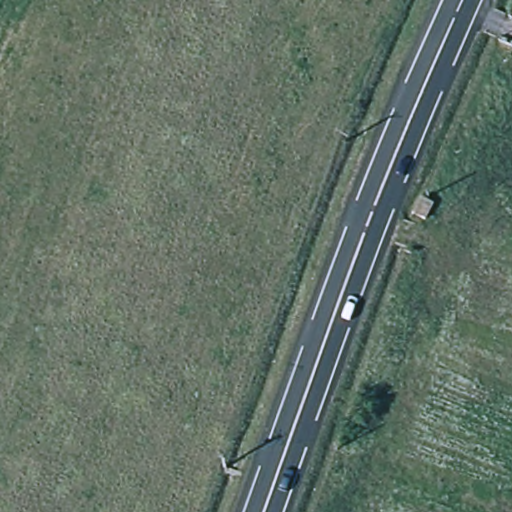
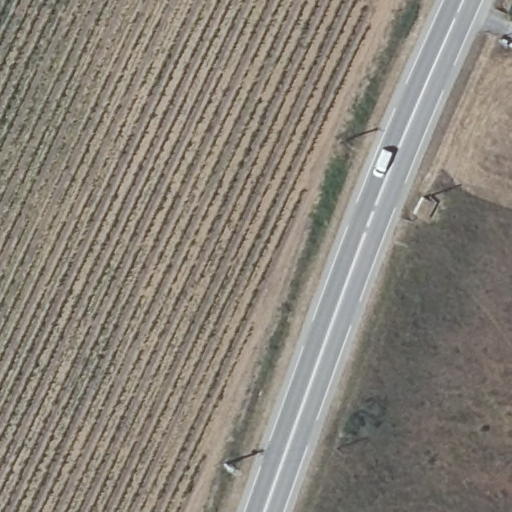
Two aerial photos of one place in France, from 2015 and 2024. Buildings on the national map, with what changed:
unchanged [(435,203),(427,218),(416,213),(424,197),(435,203)]

